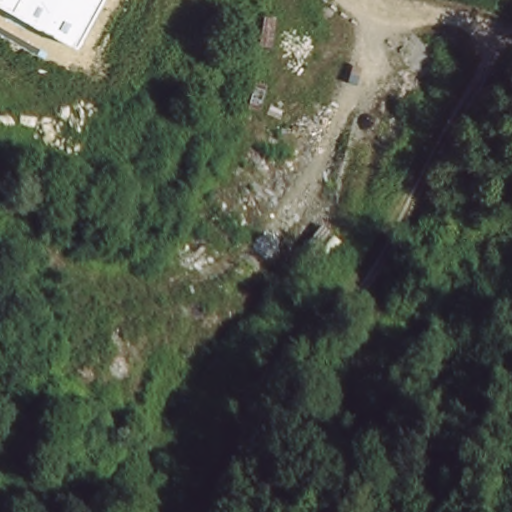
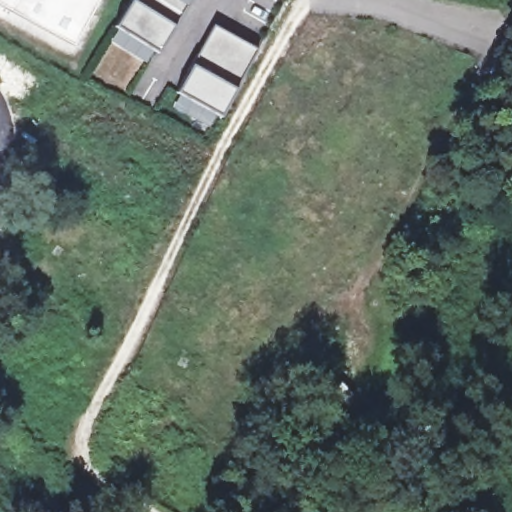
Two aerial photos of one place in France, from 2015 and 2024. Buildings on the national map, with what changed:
unchanged [(73,46),(0,7),(0,0),(98,0),(73,46)]
new [(109,40),(117,27),(114,25),(129,0),(138,0),(174,22),(156,50),(147,63),(109,40)]
new [(174,22),(138,0),(188,0),(174,22)]
new [(171,105),(178,92),(175,91),(213,22),(257,46),(236,88),(218,115),(210,127),(171,105)]

